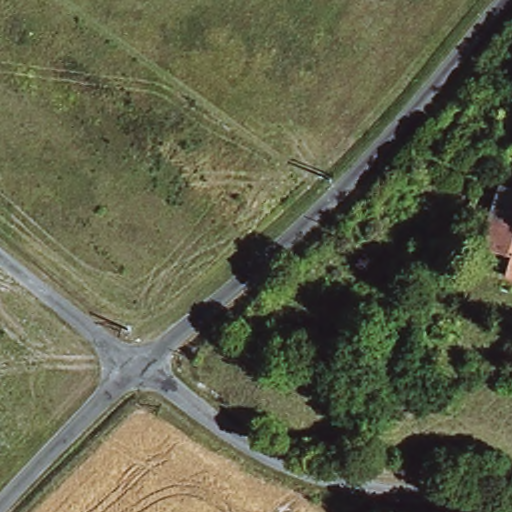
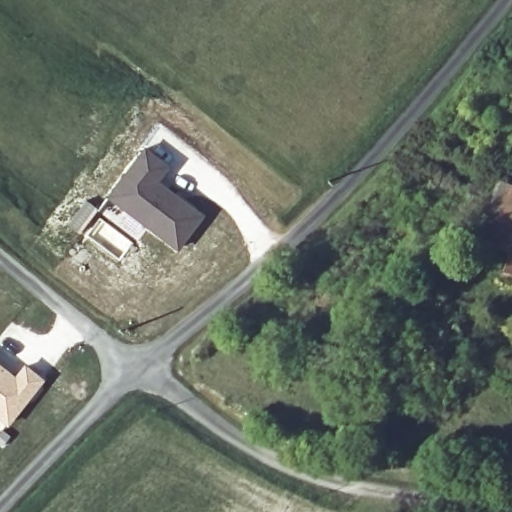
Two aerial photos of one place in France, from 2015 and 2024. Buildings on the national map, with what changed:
new [(142,146),(170,166),(160,180),(205,215),(177,253),(103,197),(142,146)]
unchanged [(512,193),(512,255),(478,244),(488,213),(505,218),(512,193)]
new [(14,374),(23,363),(45,379),(7,428),(0,422),(0,363),(14,374)]

